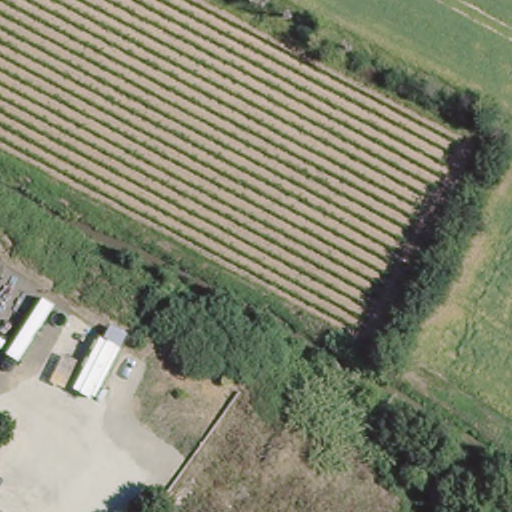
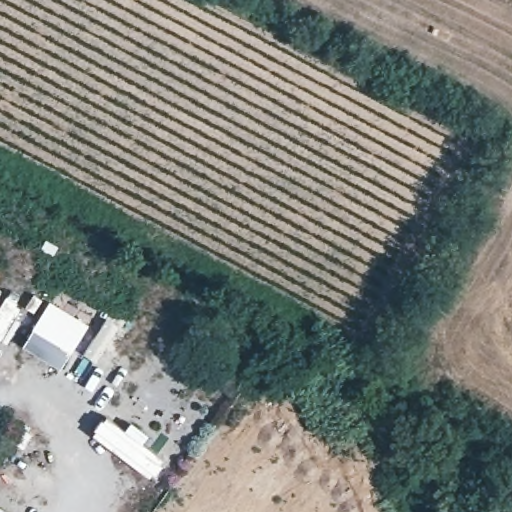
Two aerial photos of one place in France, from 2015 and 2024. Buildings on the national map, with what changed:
new [(22,346),(52,299),(92,324),(63,370),(22,346)]

